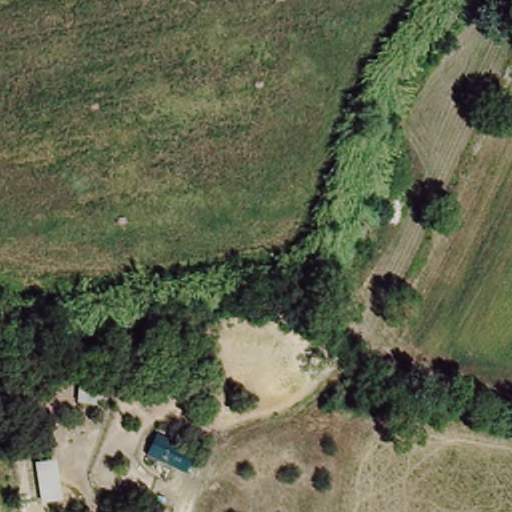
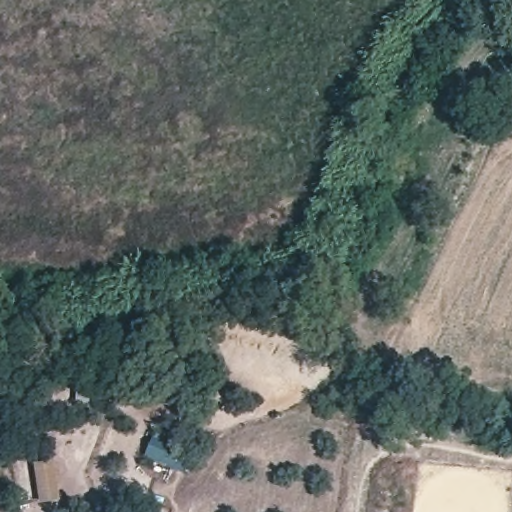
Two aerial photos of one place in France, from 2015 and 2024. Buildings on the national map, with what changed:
unchanged [(143,459),(152,436),(193,456),(181,477),(143,459)]

